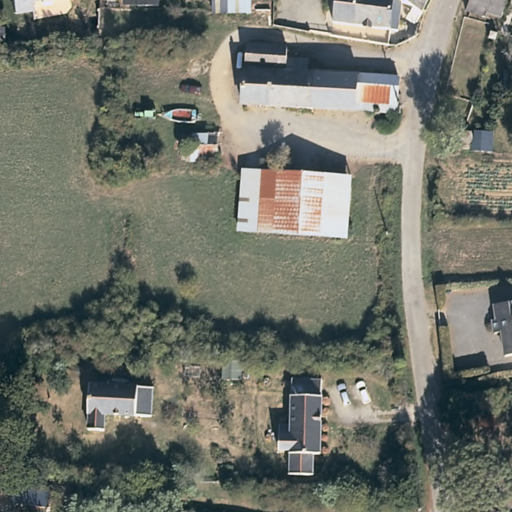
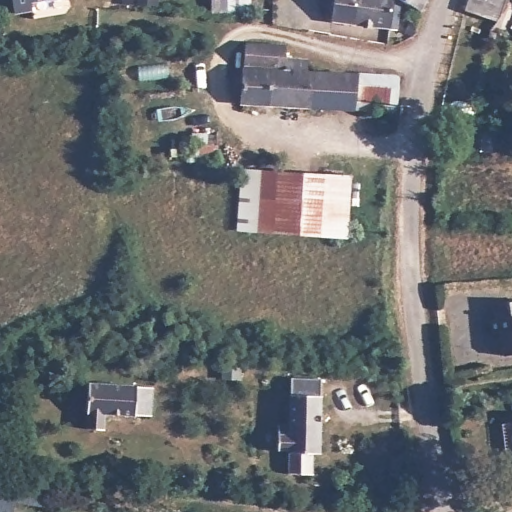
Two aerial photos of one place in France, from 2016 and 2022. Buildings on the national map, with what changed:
unchanged [(31,2),(16,4),(13,5),(13,4),(12,0),(31,0),(31,2)]
unchanged [(337,22),(340,0),(398,0),(394,30),(337,22)]
unchanged [(425,12),(405,1),(402,31),(394,30),(398,0),(432,0),(425,12)]
unchanged [(484,12),(465,6),(467,0),(503,0),(502,5),(499,12),(485,8),(484,12)]
unchanged [(261,44),(286,46),(286,60),(306,62),(306,72),(357,76),(354,110),(241,105),(245,43),(261,44)]
unchanged [(503,66),(501,74),(495,72),(497,65),(503,66)]
unchanged [(397,77),(395,107),(354,110),(357,76),(397,77)]
unchanged [(470,132),(470,141),(468,144),(464,145),(459,143),(459,139),(460,134),(461,130),(470,132)]
unchanged [(186,162),(186,145),(192,145),(192,134),(218,134),(218,146),(217,162),(186,162)]
unchanged [(350,177),(347,237),(238,230),(242,170),(350,177)]
unchanged [(505,327),(498,327),(496,315),(499,315),(497,300),(512,297),(512,350),(508,351),(505,327)]
unchanged [(235,361),(242,361),(242,376),(225,376),(225,361),(235,361)]
unchanged [(159,375),(157,405),(103,402),(103,413),(85,412),(86,400),(83,400),(85,370),(159,375)]
unchanged [(293,470),(294,448),(294,446),(282,445),(282,421),(294,420),(296,374),(326,375),(324,450),(323,471),(293,470)]
unchanged [(45,495),(43,505),(11,501),(10,512),(3,512),(0,512),(0,487),(12,489),(45,495)]

